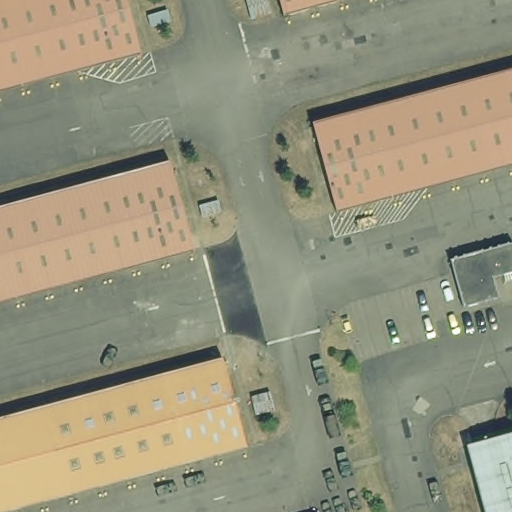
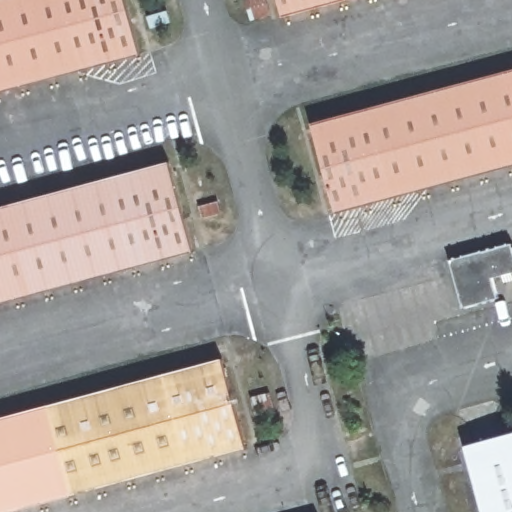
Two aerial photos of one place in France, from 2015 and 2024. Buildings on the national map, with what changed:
unchanged [(0,89),(0,0),(126,0),(140,50),(0,89)]
unchanged [(273,19),(255,23),(249,0),(268,0),(273,19)]
unchanged [(283,15),(279,0),(337,0),(283,15)]
unchanged [(512,68),(512,163),(337,210),(313,120),(512,68)]
unchanged [(0,301),(0,207),(169,162),(193,247),(0,301)]
unchanged [(512,239),(512,271),(496,275),(500,296),(465,305),(455,256),(512,239)]
unchanged [(0,511),(0,418),(223,359),(246,445),(0,511)]
unchanged [(482,512),(463,443),(512,430),(512,512),(482,512)]

